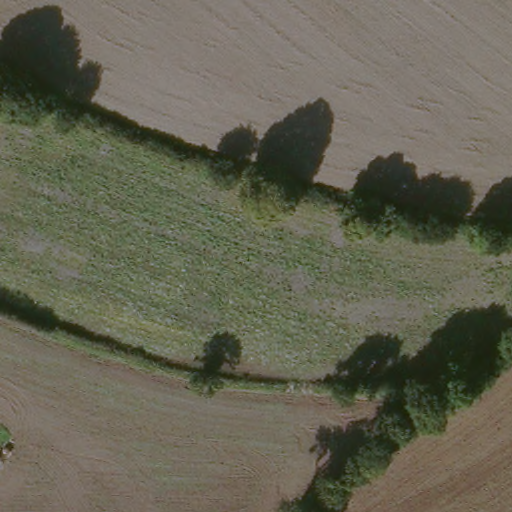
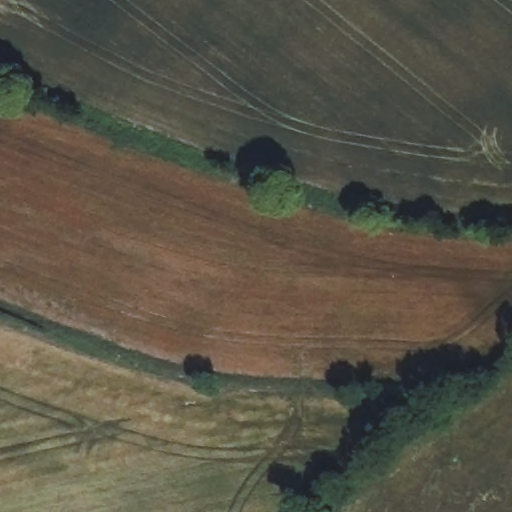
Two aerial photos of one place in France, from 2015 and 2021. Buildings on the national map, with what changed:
[]

